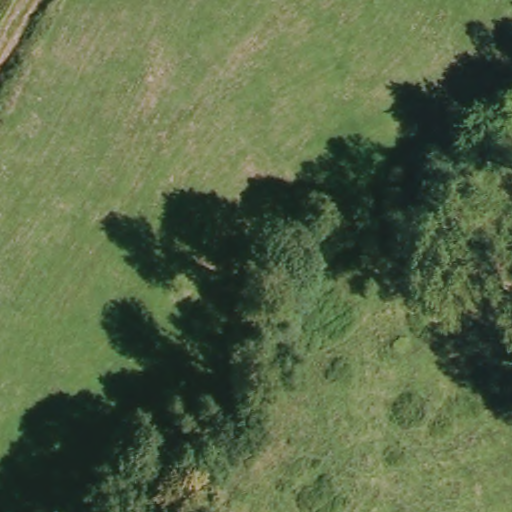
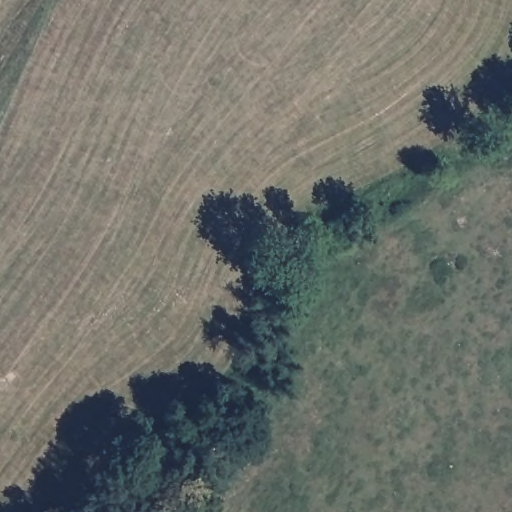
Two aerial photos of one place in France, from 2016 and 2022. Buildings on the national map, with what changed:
[]

